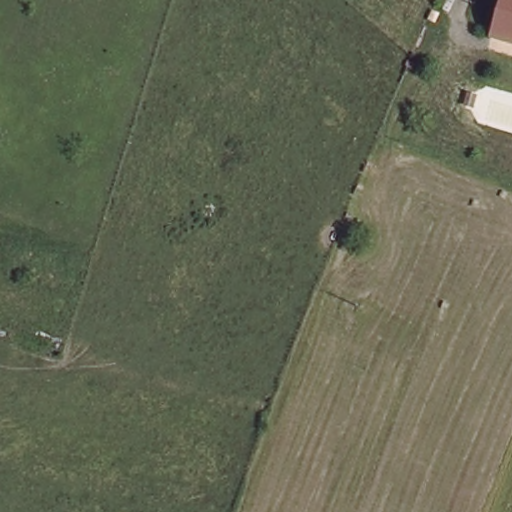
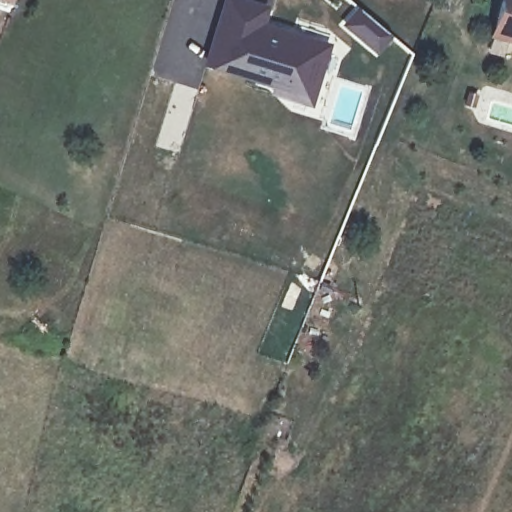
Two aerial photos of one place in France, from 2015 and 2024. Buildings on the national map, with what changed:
new [(270,93),(271,89),(201,66),(221,0),(248,0),(270,7),(265,23),(330,43),(311,107),(270,93)]
unchanged [(505,0),(512,0),(512,44),(493,38),(505,0)]
new [(355,5),(394,38),(377,58),(338,25),(355,5)]

